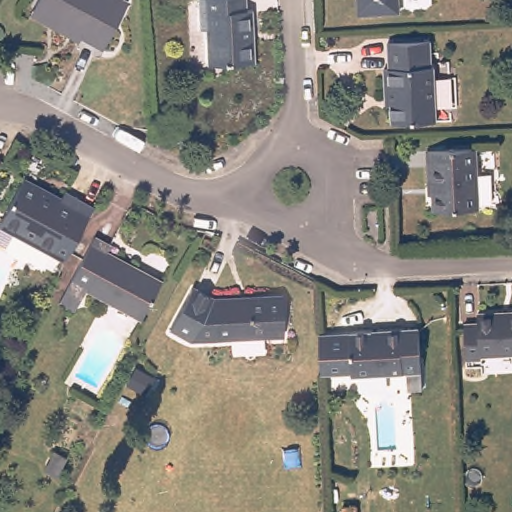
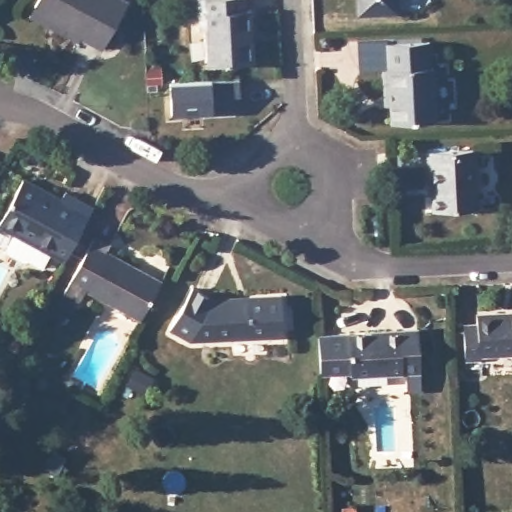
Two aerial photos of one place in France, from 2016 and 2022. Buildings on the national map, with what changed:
unchanged [(30,15),(35,6),(39,0),(123,0),(127,2),(101,50),(80,38),(78,41),(30,15)]
unchanged [(207,59),(205,29),(200,30),(199,0),(246,0),(247,11),(252,11),(254,63),(225,64),(225,58),(207,59)]
unchanged [(347,1),(346,0),(374,0),(347,1)]
unchanged [(384,70),(389,69),(388,43),(429,41),(429,68),(433,67),(434,121),(393,123),(391,105),(386,105),(384,70)]
new [(239,96),(234,97),(234,112),(170,115),(169,83),(239,80),(239,96)]
unchanged [(428,184),(427,152),(474,150),(477,209),(434,211),(433,194),(429,194),(428,184)]
unchanged [(40,243),(32,257),(19,250),(14,251),(0,243),(0,233),(5,224),(0,221),(0,196),(14,169),(51,190),(54,184),(82,199),(54,251),(40,243)]
unchanged [(59,304),(66,290),(94,236),(110,246),(108,252),(161,282),(140,319),(87,290),(83,299),(76,312),(59,304)]
unchanged [(170,330),(193,291),(210,301),(281,297),(283,337),(190,341),(170,330)]
unchanged [(481,356),(481,360),(466,361),(463,326),(477,325),(477,316),(512,313),(512,354),(481,356)]
unchanged [(408,384),(407,372),(353,375),(353,374),(320,375),(320,372),(319,337),(351,335),(418,332),(420,372),(421,384),(408,384)]
unchanged [(46,471),(55,453),(65,459),(56,476),(46,471)]
unchanged [(356,509),(356,512),(343,512),(343,509),(356,509)]

